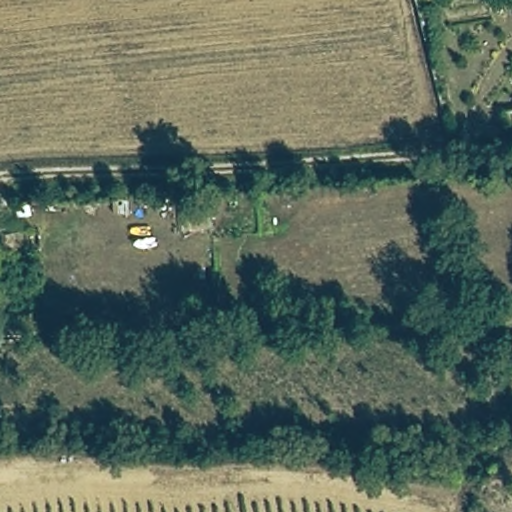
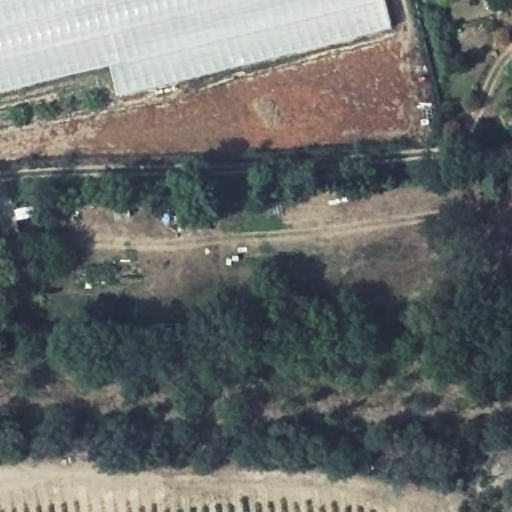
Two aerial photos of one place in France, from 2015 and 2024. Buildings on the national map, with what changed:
new [(111,72),(0,97),(0,0),(387,0),(395,32),(117,99),(111,72)]
unchanged [(512,112),(512,132),(501,134),(498,113),(512,112)]

